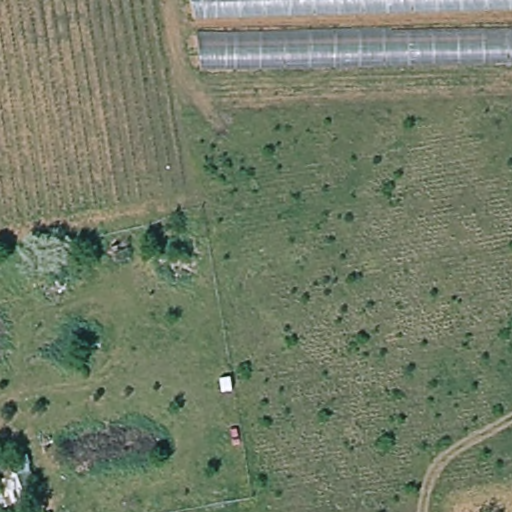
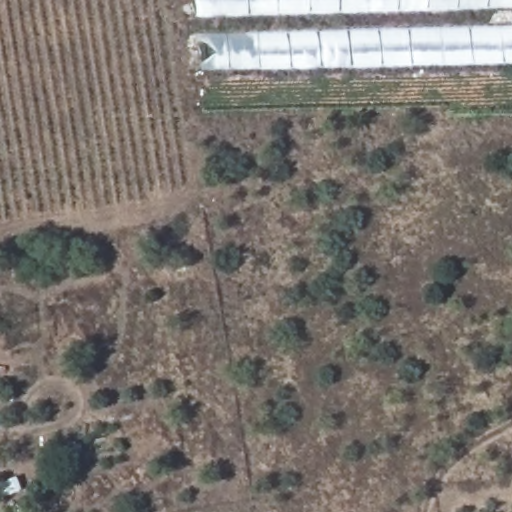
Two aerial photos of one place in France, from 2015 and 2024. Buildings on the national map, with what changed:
unchanged [(512,0),(512,64),(202,69),(192,0),(512,0)]

